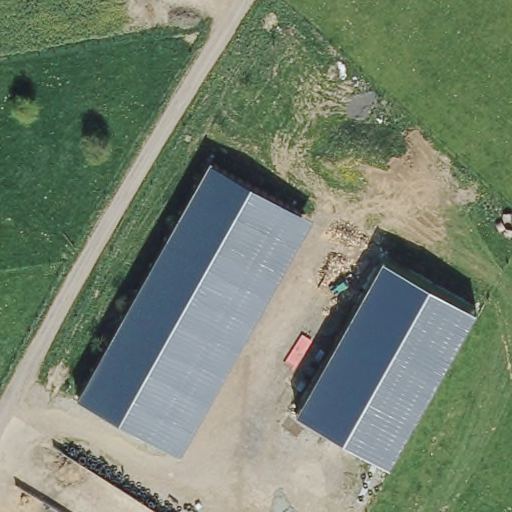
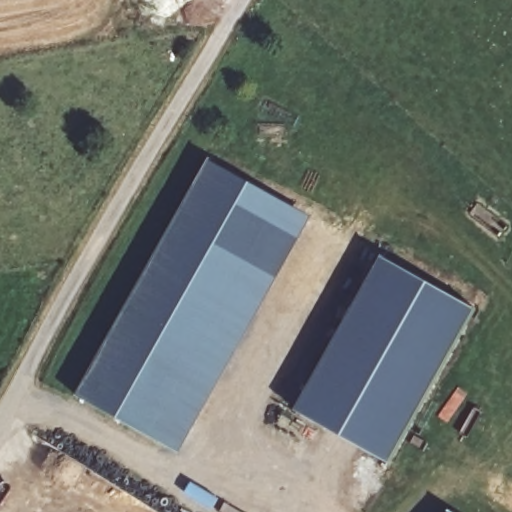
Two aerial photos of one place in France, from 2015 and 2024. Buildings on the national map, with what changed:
unchanged [(313,218),(180,453),(78,395),(210,160),(313,218)]
unchanged [(382,257),(476,309),(390,462),(296,410),(382,257)]

